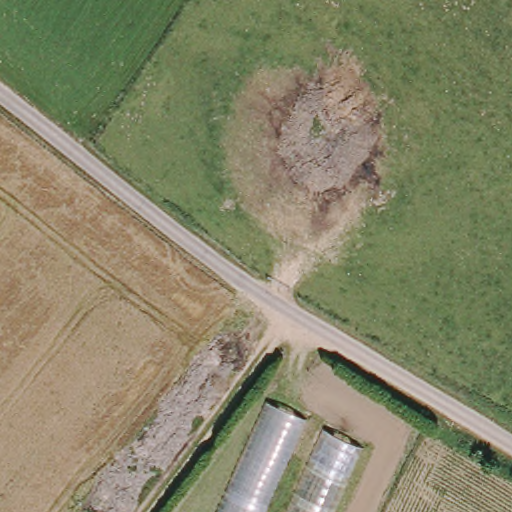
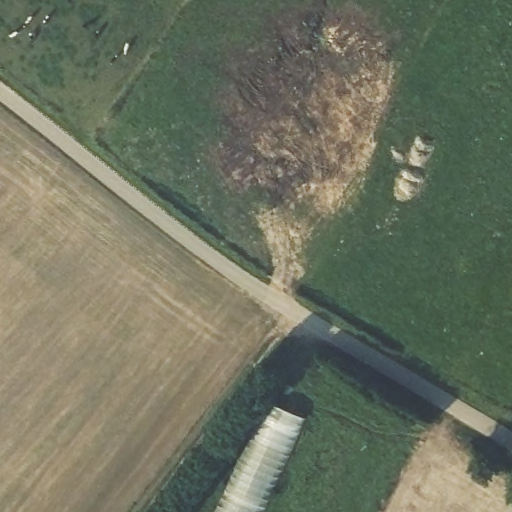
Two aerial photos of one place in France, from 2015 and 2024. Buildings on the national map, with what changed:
unchanged [(269,398),(309,417),(265,512),(218,512),(269,398)]
demolished [(364,444),(335,512),(289,512),(326,428),(364,444)]

